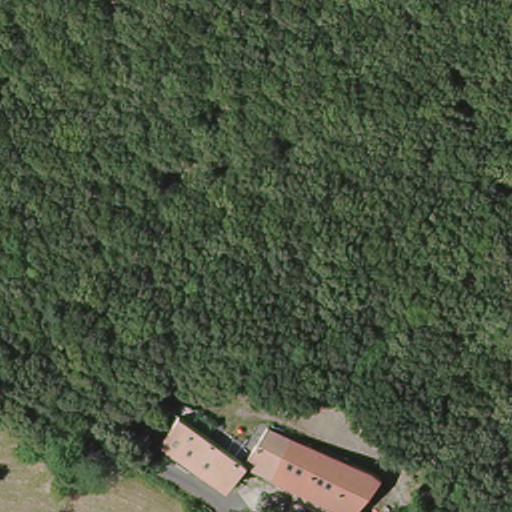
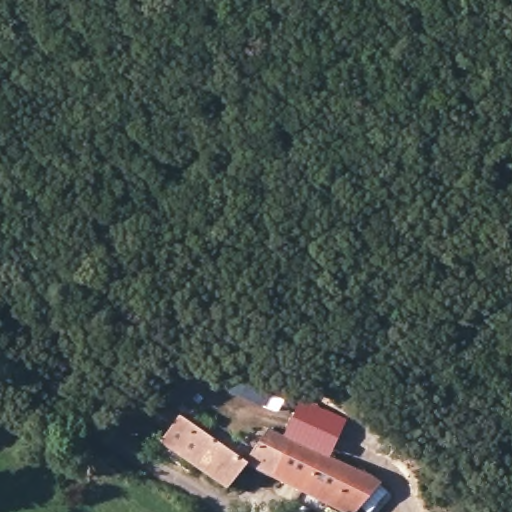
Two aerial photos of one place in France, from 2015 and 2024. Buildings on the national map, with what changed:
new [(330,458),(286,435),(304,399),(348,422),(330,458)]
unchanged [(194,469),(162,446),(186,411),(216,435),(199,462),(194,469)]
unchanged [(362,512),(335,512),(255,466),(249,462),(274,428),(286,435),(330,458),(382,486),(362,512)]
unchanged [(231,486),(199,462),(216,435),(249,462),(231,486)]

